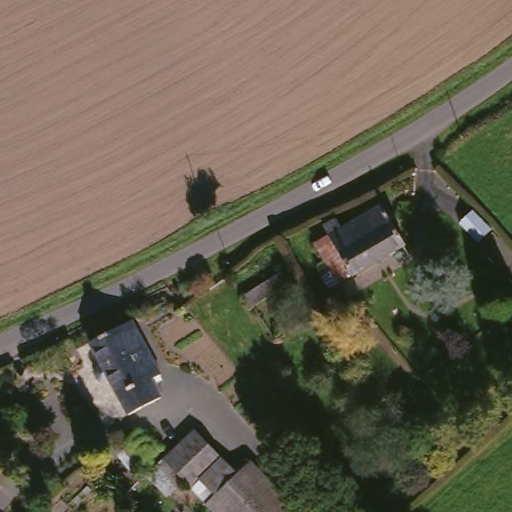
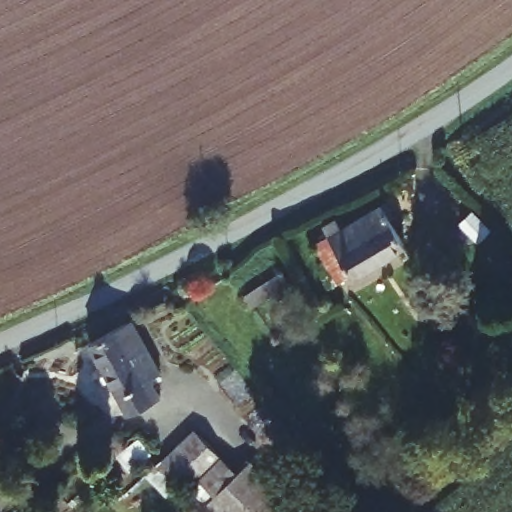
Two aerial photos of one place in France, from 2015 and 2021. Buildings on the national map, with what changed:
unchanged [(328,233),(337,230),(333,219),(347,213),(352,224),(387,211),(402,260),(342,276),(328,233)]
unchanged [(117,407),(112,392),(90,334),(140,316),(163,375),(150,379),(154,396),(117,407)]
unchanged [(165,457),(194,429),(230,467),(202,496),(165,457)]
unchanged [(252,460),(303,512),(219,512),(210,503),(252,460)]

